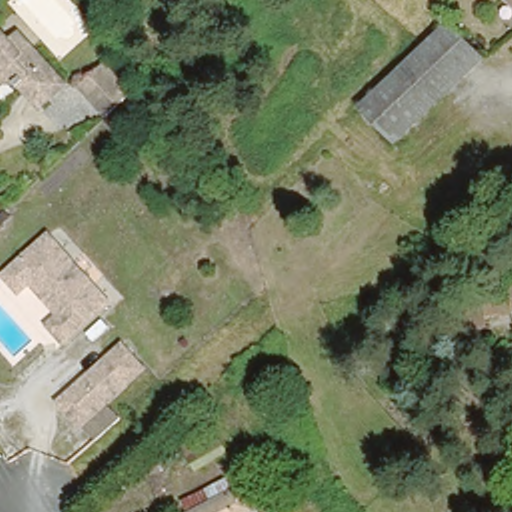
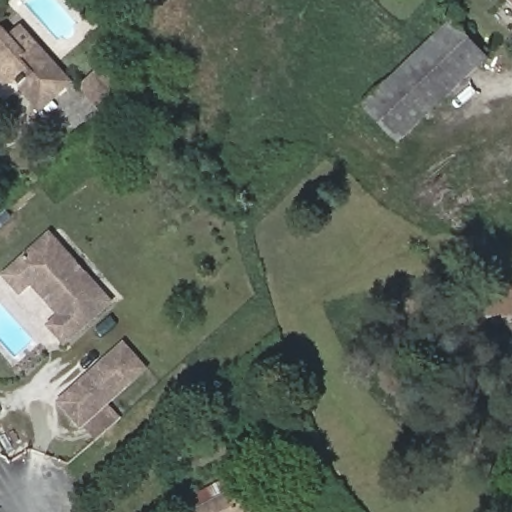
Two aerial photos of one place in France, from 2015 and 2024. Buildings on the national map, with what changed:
unchanged [(512,1),(511,0),(512,0),(512,1)]
unchanged [(40,105),(19,84),(8,94),(0,86),(0,22),(10,35),(19,25),(67,81),(40,105)]
unchanged [(454,24),(487,60),(392,138),(359,102),(451,26),(454,24)]
unchanged [(109,110),(83,82),(105,61),(131,90),(109,110)]
unchanged [(62,336),(47,320),(58,310),(28,276),(17,286),(2,270),(46,230),(107,296),(62,336)]
unchanged [(57,394),(120,336),(134,351),(141,360),(123,375),(104,393),(119,410),(93,433),(78,417),(57,394)]
unchanged [(183,445),(220,432),(229,451),(193,468),(183,445)]
unchanged [(184,512),(180,503),(238,477),(249,502),(227,512),(184,512)]

